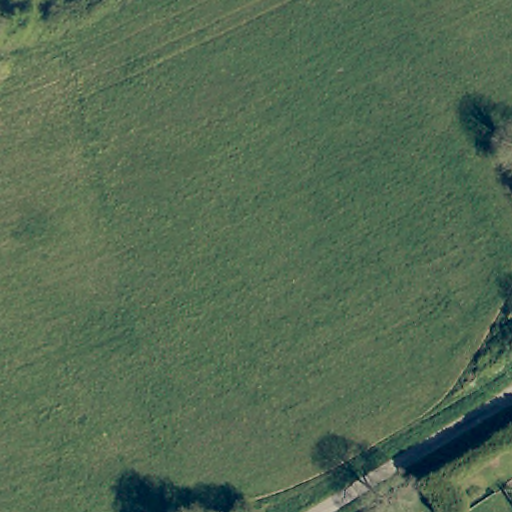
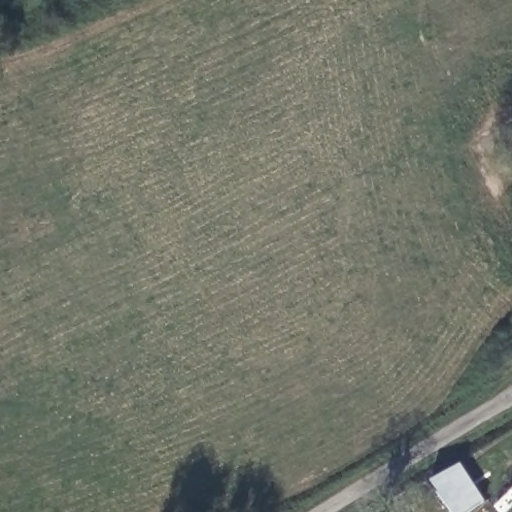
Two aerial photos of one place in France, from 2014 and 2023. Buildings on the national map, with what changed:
new [(467,512),(453,512),(430,479),(462,462),(486,498),(467,512)]

